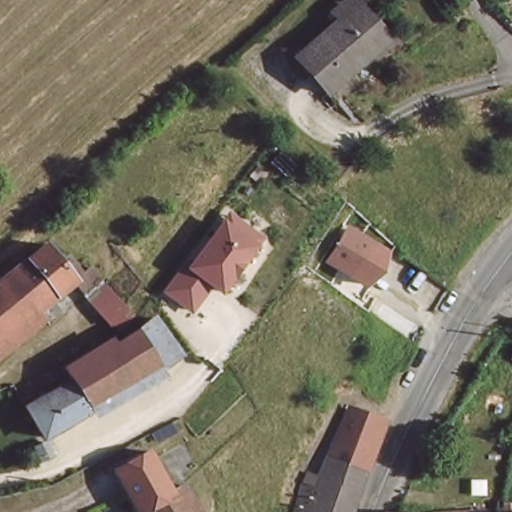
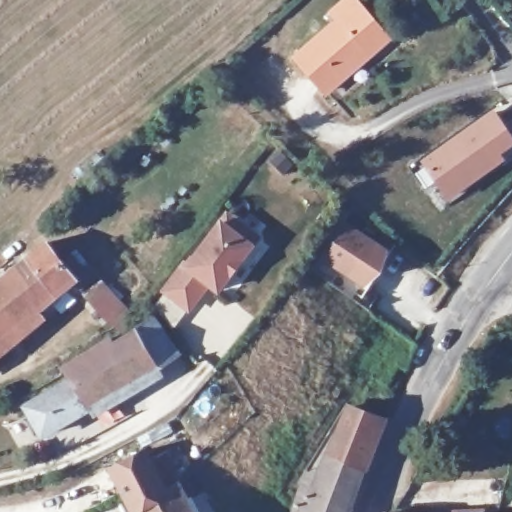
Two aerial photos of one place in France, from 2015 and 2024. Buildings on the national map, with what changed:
unchanged [(332,20),(321,12),(336,0),(357,0),(396,49),(336,103),(291,56),(332,20)]
new [(423,166),(419,160),(493,107),(512,134),(512,146),(503,154),(506,159),(448,201),(434,182),(425,188),(414,172),(423,166)]
unchanged [(221,295),(209,288),(191,314),(159,292),(182,261),(186,265),(226,210),(264,238),(221,295)]
unchanged [(383,273),(366,288),(324,261),(348,224),(391,250),(383,273)]
unchanged [(80,287),(0,352),(0,292),(52,250),(80,287)]
unchanged [(83,290),(91,283),(125,325),(115,333),(83,290)]
unchanged [(161,370),(105,406),(48,439),(30,410),(75,381),(71,375),(121,343),(126,350),(139,340),(160,326),(184,353),(161,370)]
unchanged [(349,407),(384,420),(369,470),(358,471),(346,512),(295,512),(306,484),(319,490),(349,407)]
unchanged [(115,467),(145,451),(168,492),(138,507),(115,467)]
unchanged [(138,507),(168,492),(181,485),(195,512),(140,512),(138,507)]

